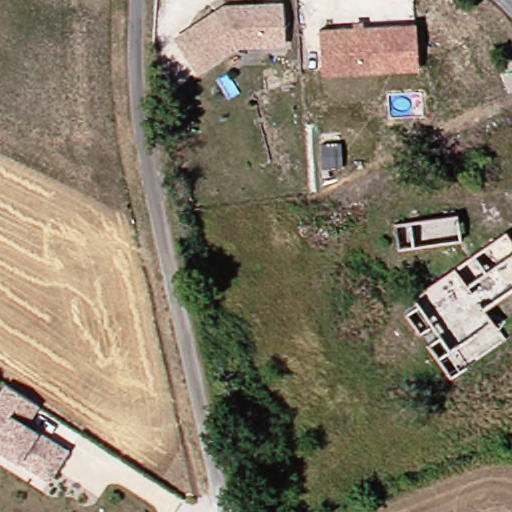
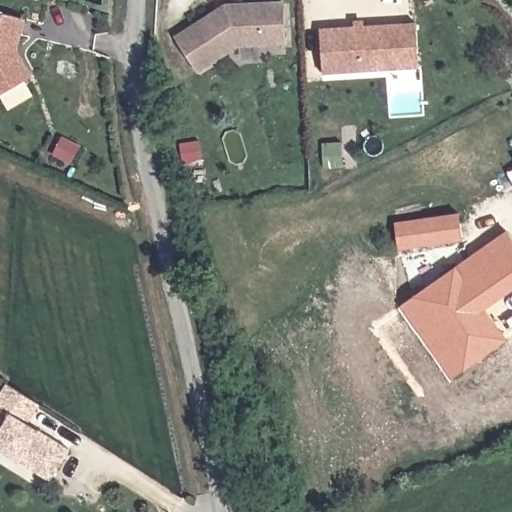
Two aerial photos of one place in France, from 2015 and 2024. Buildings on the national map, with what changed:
unchanged [(237,38),(197,66),(175,35),(217,6),(225,1),(239,0),(284,0),(286,35),(237,38)]
unchanged [(33,77),(25,81),(33,96),(8,110),(0,96),(0,12),(25,18),(17,51),(33,77)]
unchanged [(321,71),(319,26),(354,24),(353,20),(362,20),(362,24),(415,20),(416,39),(417,51),(418,65),(398,66),(384,68),(321,71)]
new [(464,240),(399,251),(395,222),(458,214),(464,240)]
new [(485,308),(508,340),(452,379),(400,307),(506,231),(512,239),(512,288),(485,308)]
unchanged [(26,422),(25,423),(36,430),(67,450),(49,480),(0,450),(0,391),(5,384),(16,391),(37,404),(26,422)]

